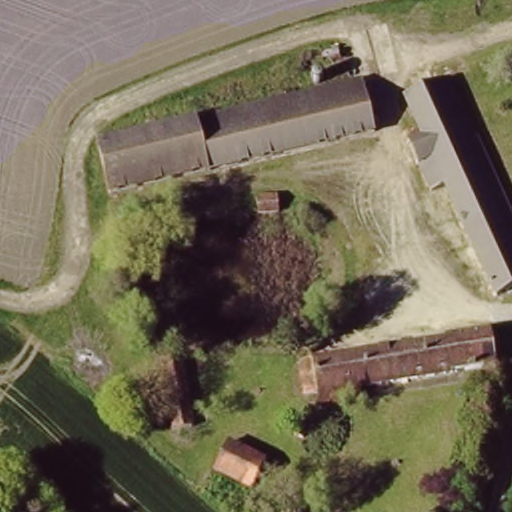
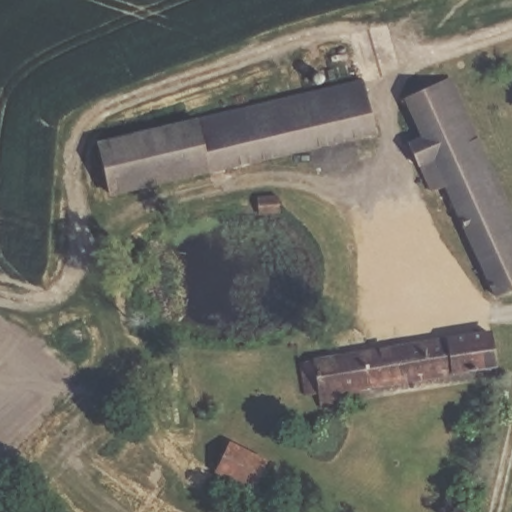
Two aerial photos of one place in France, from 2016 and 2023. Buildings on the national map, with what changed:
unchanged [(228,106),(366,73),(381,111),(384,127),(123,191),(108,137),(191,115),(228,106)]
unchanged [(503,293),(452,181),(439,186),(418,139),(429,133),(413,97),(460,80),(489,141),(479,147),(512,218),(512,289),(503,293)]
unchanged [(274,206),(274,186),(296,187),(294,205),(274,206)]
unchanged [(369,387),(371,400),(348,403),(326,407),(324,396),(312,397),(306,360),(496,327),(502,365),(369,387)]
unchanged [(168,433),(158,362),(194,356),(202,424),(168,433)]
unchanged [(319,428),(312,437),(309,435),(304,431),(311,422),(313,423),(319,428)]
unchanged [(273,458),(259,487),(222,467),(238,436),(273,458)]

